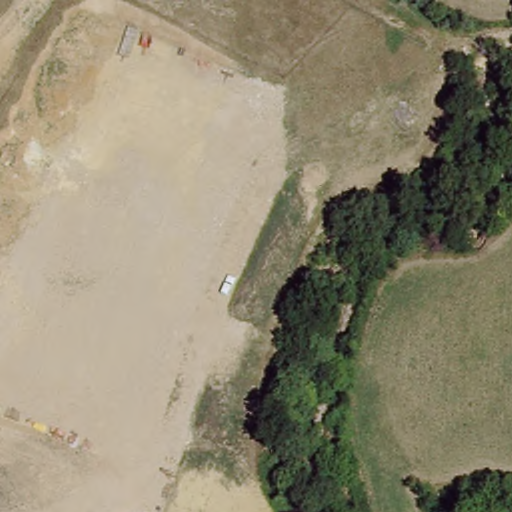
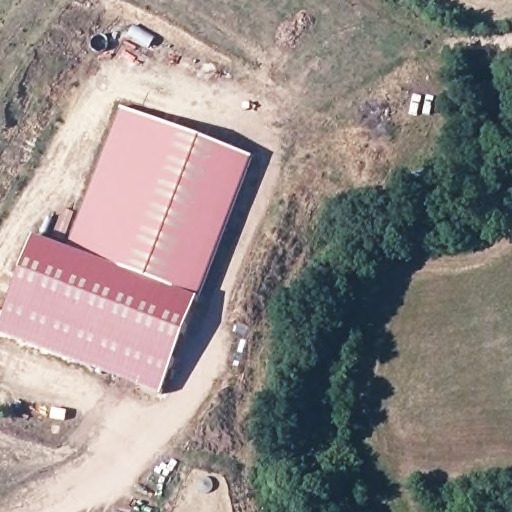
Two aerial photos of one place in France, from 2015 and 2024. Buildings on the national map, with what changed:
new [(69,250),(122,109),(252,158),(162,393),(0,331),(0,329),(34,237),(69,250)]

